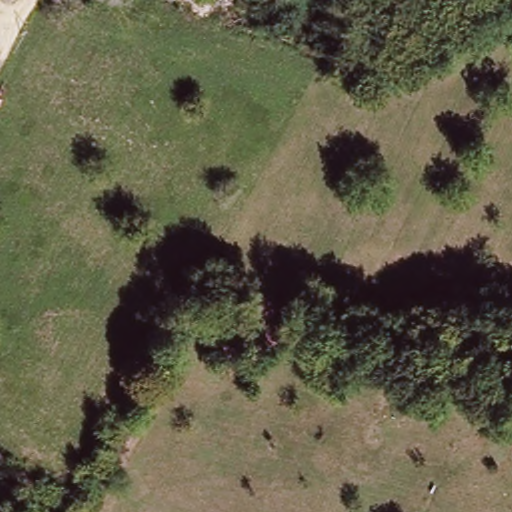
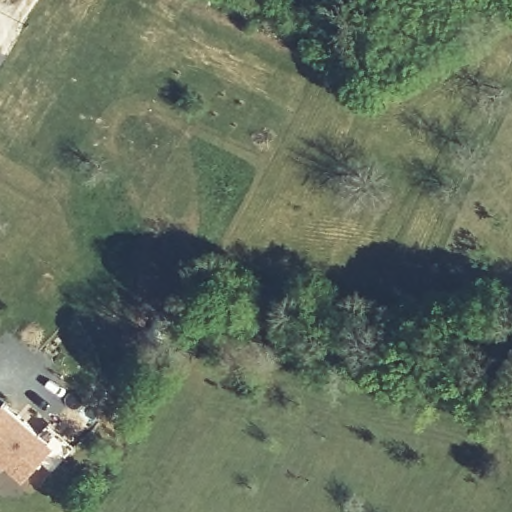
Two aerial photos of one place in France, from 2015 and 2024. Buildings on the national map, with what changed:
new [(3,404),(37,436),(52,450),(39,463),(23,481),(0,459),(0,407),(3,404)]

